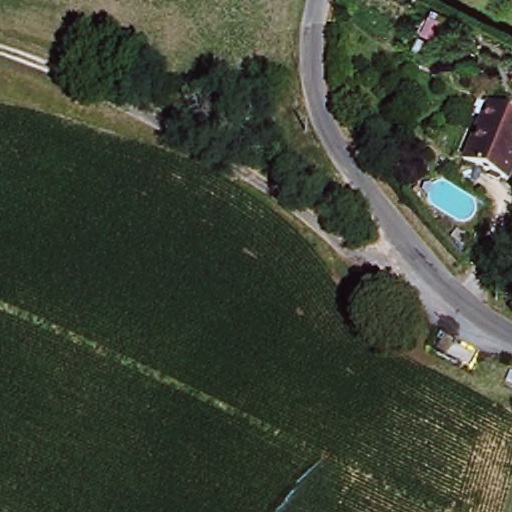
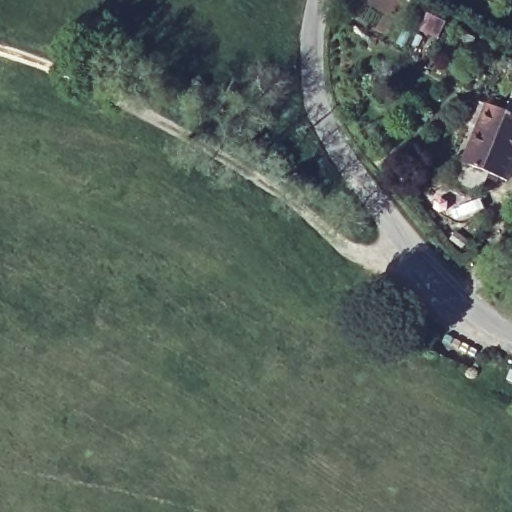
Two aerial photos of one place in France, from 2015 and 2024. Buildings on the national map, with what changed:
unchanged [(499,182),(466,168),(490,111),(512,121),(512,150),(499,182)]

